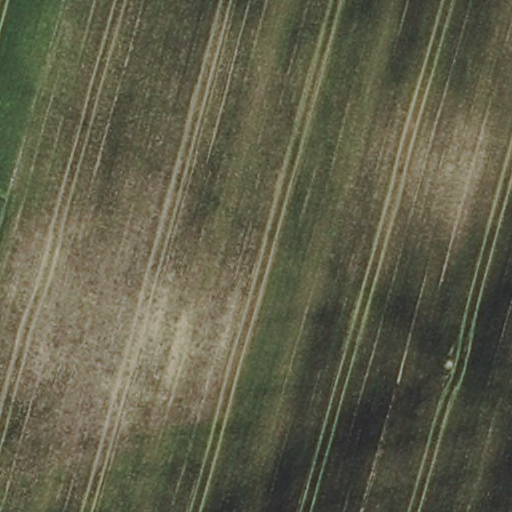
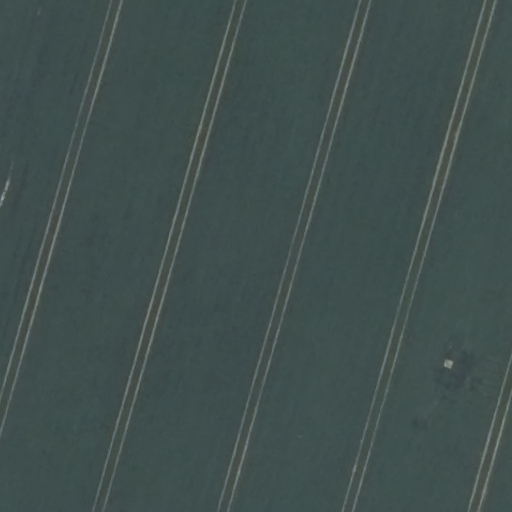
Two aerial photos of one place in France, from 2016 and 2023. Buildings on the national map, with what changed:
[]

